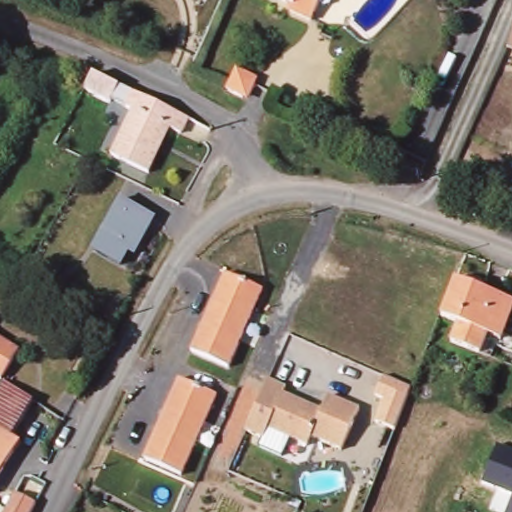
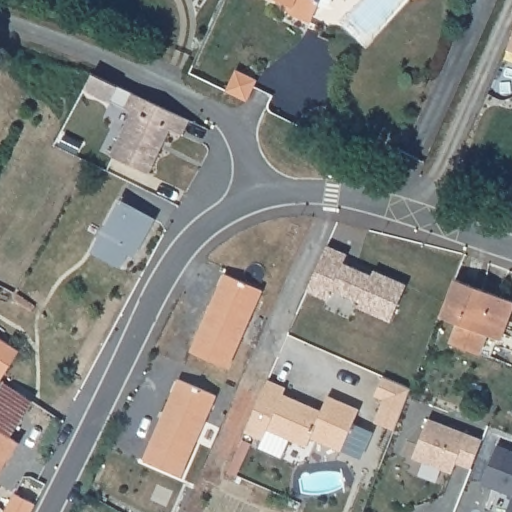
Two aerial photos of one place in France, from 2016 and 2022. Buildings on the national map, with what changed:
unchanged [(334,6),(329,8),(324,6),(317,22),(295,13),(298,7),(288,3),(282,0),(336,0),(334,6)]
unchanged [(253,78),(255,85),(250,97),(243,99),(226,91),(237,70),(253,78)]
unchanged [(139,93),(179,113),(192,119),(185,135),(173,130),(154,172),(154,174),(116,156),(117,154),(118,155),(139,112),(131,108),(134,104),(119,96),(115,103),(89,89),(98,74),(139,93)]
unchanged [(92,252),(119,198),(154,218),(135,257),(128,253),(121,266),(92,252)]
new [(327,245),(347,254),(343,262),(372,275),(374,270),(406,284),(391,321),(358,306),(360,301),(332,289),(327,299),(307,290),(327,245)]
unchanged [(263,290),(229,368),(191,352),(225,274),(263,290)]
unchanged [(512,299),(512,321),(504,341),(503,340),(496,358),(456,343),(463,324),(444,316),(461,280),(512,299)]
unchanged [(6,380),(0,376),(0,334),(25,350),(6,380)]
unchanged [(222,391),(184,470),(147,453),(184,374),(222,391)]
unchanged [(374,421),(382,398),(374,395),(381,376),(411,387),(396,430),(374,421)]
unchanged [(310,437),(306,447),(265,430),(262,438),(247,433),(268,380),(287,388),(284,395),(323,409),(328,396),(359,408),(342,448),(310,437)]
unchanged [(16,437),(25,443),(0,481),(0,397),(9,382),(39,401),(16,437)]
new [(429,419),(483,440),(472,468),(457,463),(453,473),(414,458),(429,419)]
unchanged [(482,484),(497,446),(512,451),(512,496),(482,484)]
unchanged [(50,481),(43,497),(26,490),(34,474),(50,481)]
unchanged [(20,493),(39,504),(35,512),(0,512),(0,503),(10,512),(20,493)]
unchanged [(505,512),(512,496),(512,512),(505,512)]

